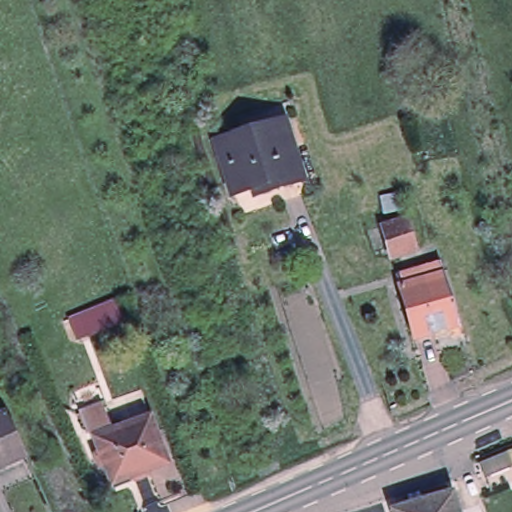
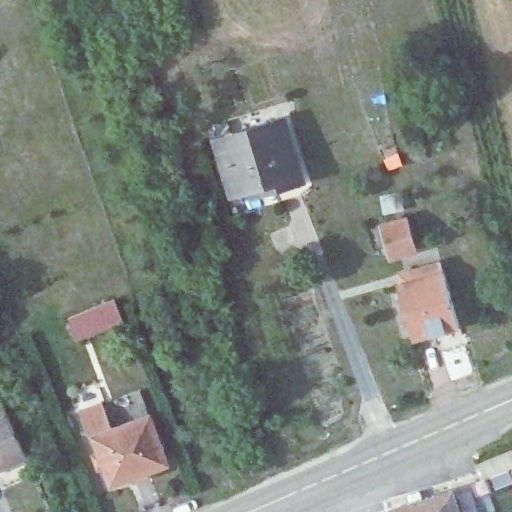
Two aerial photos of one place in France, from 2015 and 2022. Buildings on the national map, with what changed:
unchanged [(283,118),(301,177),(282,182),(264,124),(283,118)]
unchanged [(250,183),(245,184),(232,188),(217,138),(229,135),(264,124),(282,182),(275,184),(252,191),(250,183)]
unchanged [(393,189),(401,216),(409,214),(420,253),(390,262),(379,223),(388,221),(379,193),(393,189)]
unchanged [(416,338),(401,286),(397,273),(410,269),(442,260),(446,273),(461,325),(416,338)]
unchanged [(67,321),(77,316),(114,302),(122,323),(86,338),(76,342),(67,321)]
unchanged [(174,462),(151,471),(149,477),(134,483),(129,479),(112,486),(99,455),(106,452),(100,436),(94,433),(85,410),(108,401),(119,429),(156,415),(174,462)]
unchanged [(6,409),(26,455),(24,456),(6,464),(0,467),(0,412),(2,411),(6,409)]
unchanged [(512,465),(486,476),(481,462),(506,451),(512,465)]
unchanged [(447,490),(455,512),(390,512),(389,508),(447,490)]

